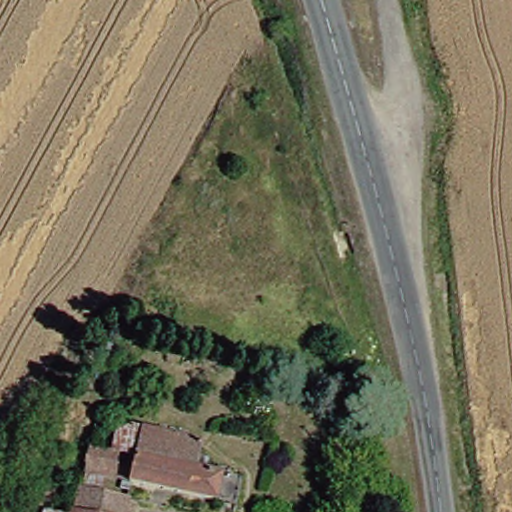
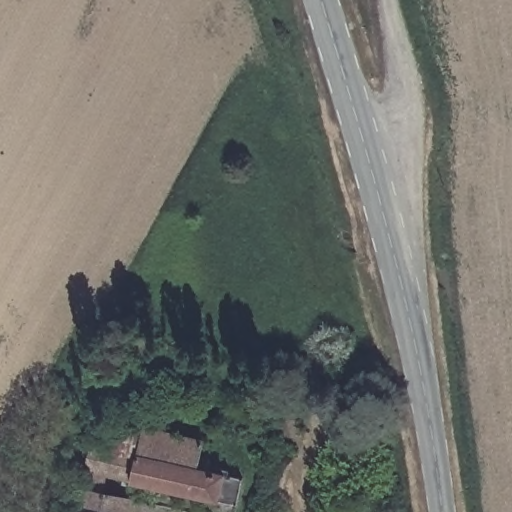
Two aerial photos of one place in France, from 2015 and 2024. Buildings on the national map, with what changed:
unchanged [(246,481),(240,505),(224,502),(134,483),(89,473),(92,459),(95,445),(119,451),(125,427),(146,431),(205,444),(201,459),(209,461),(207,472),(212,474),(214,469),(231,472),(234,473),(232,478),(246,481)]
unchanged [(86,494),(132,502),(129,512),(82,512),(86,494)]

